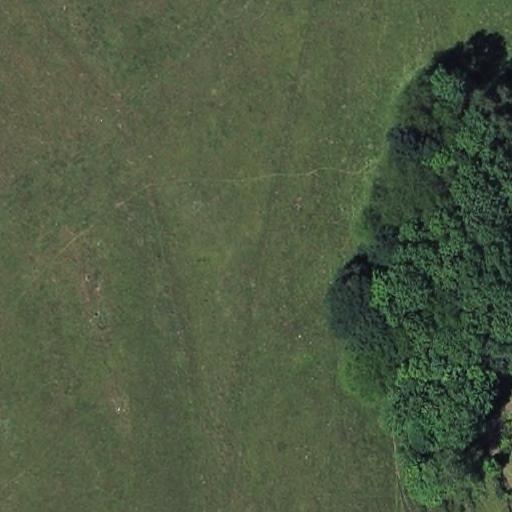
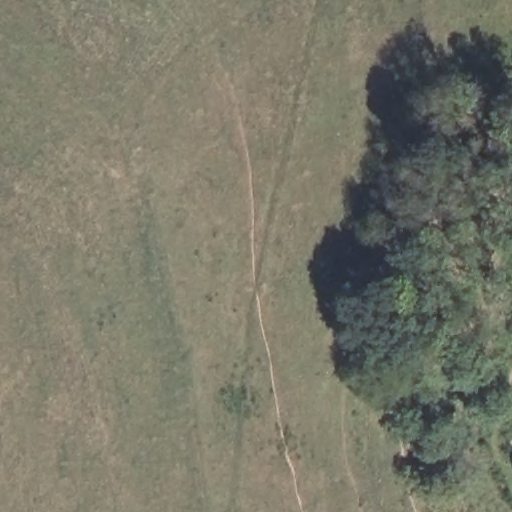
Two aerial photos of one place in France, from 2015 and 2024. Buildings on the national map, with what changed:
unchanged [(512,441),(506,442),(501,426),(512,423),(512,441)]
unchanged [(512,448),(512,457),(509,448),(512,448)]

